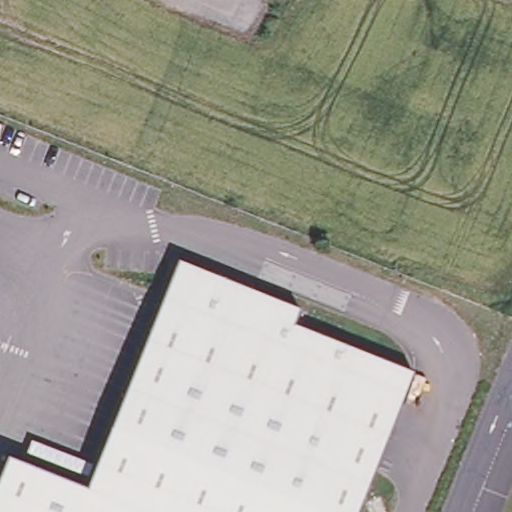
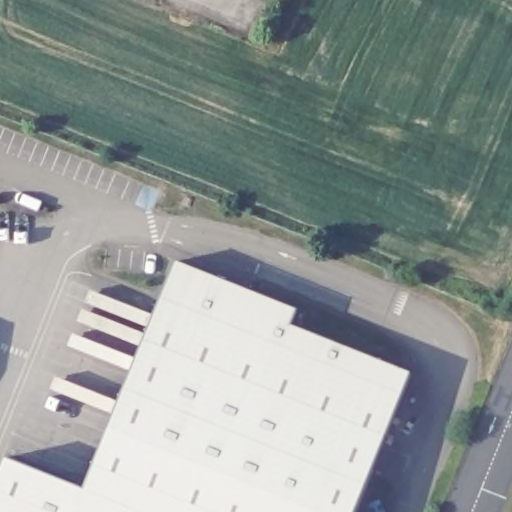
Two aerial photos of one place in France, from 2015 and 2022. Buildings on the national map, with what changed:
unchanged [(371,356),(402,369),(411,372),(355,512),(0,512),(0,472),(5,461),(6,456),(14,459),(85,488),(105,438),(176,260),(377,341),(371,356)]

